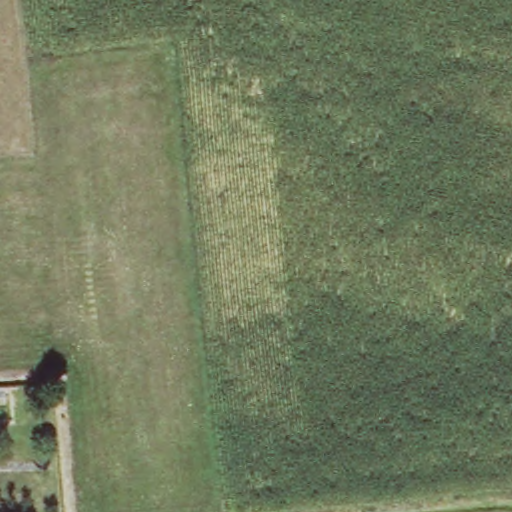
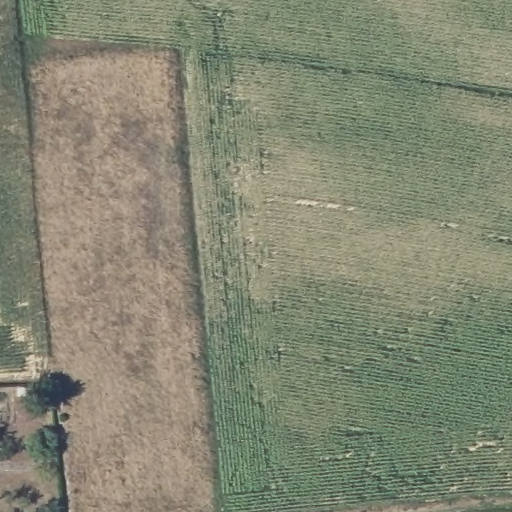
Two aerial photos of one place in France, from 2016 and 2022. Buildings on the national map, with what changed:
[]

